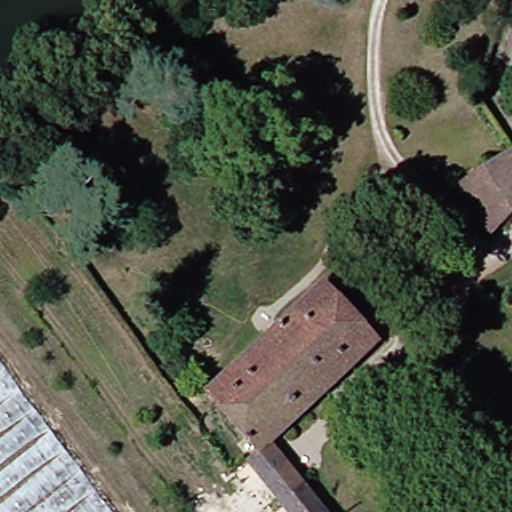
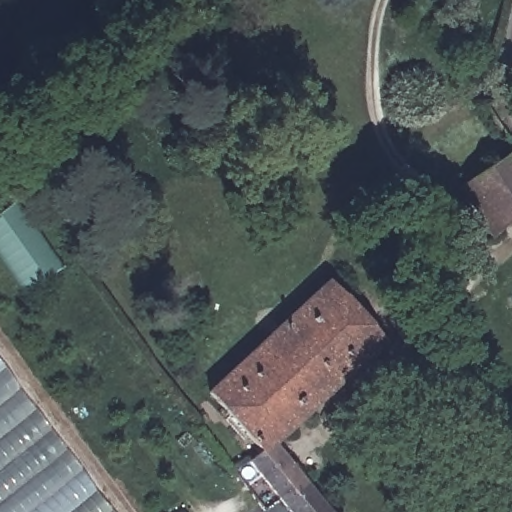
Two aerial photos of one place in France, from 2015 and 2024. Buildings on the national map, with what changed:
unchanged [(494,233),(459,191),(512,156),(512,219),(494,233)]
new [(0,214),(18,201),(63,266),(28,291),(0,252),(0,214)]
unchanged [(215,391),(334,282),(386,342),(279,442),(264,455),(215,391)]
unchanged [(0,359),(114,512),(0,512),(0,359)]
unchanged [(264,455),(279,442),(336,512),(295,512),(254,463),(264,455)]

